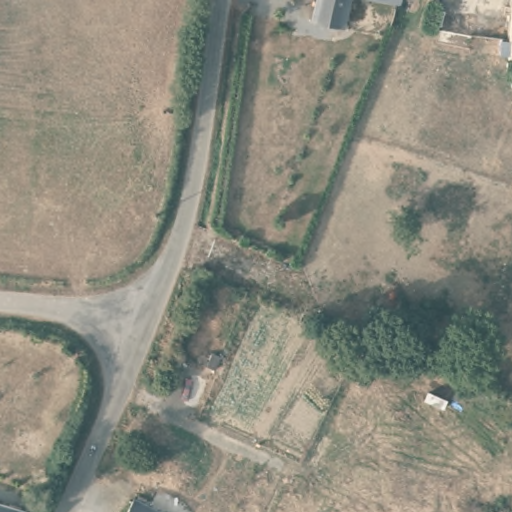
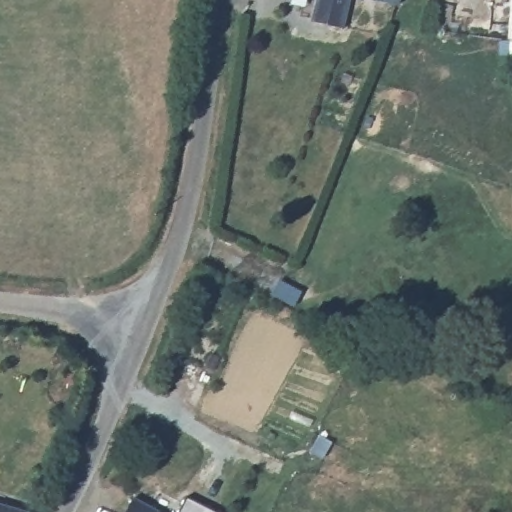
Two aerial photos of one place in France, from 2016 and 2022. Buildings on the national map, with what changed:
unchanged [(318,0),(352,0),(349,28),(316,20),(318,0)]
unchanged [(396,0),(403,0),(403,1),(396,0)]
unchanged [(158,512),(128,512),(135,497),(160,508),(158,512)]
unchanged [(29,506),(27,512),(0,512),(0,498),(29,506)]
new [(213,512),(177,512),(185,498),(213,512)]

